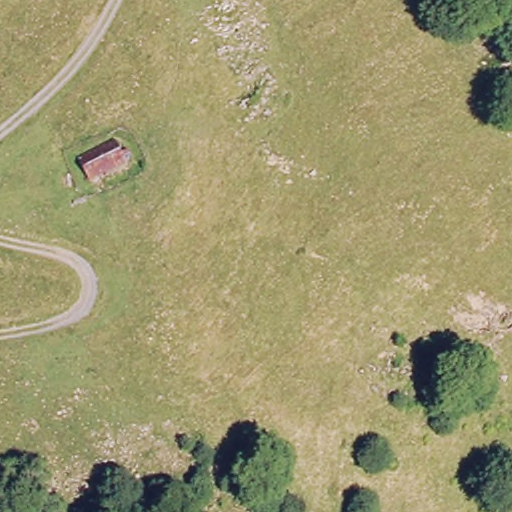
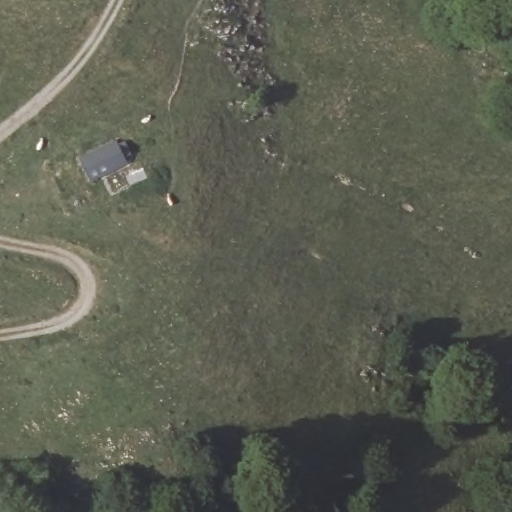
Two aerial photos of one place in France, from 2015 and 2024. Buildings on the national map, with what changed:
unchanged [(90,183),(79,158),(119,138),(131,163),(90,183)]

